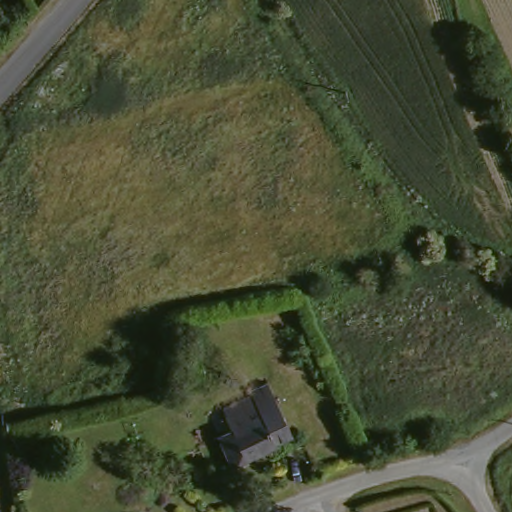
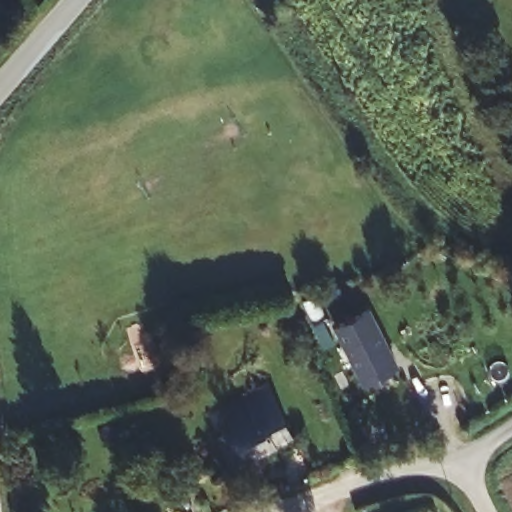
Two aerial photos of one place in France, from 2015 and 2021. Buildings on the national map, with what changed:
new [(373,309),(399,366),(366,382),(339,324),(373,309)]
unchanged [(296,433),(230,461),(214,432),(233,424),(221,399),(272,379),(296,433)]

